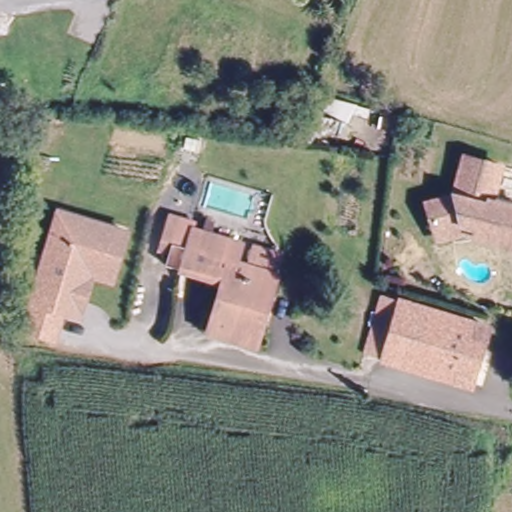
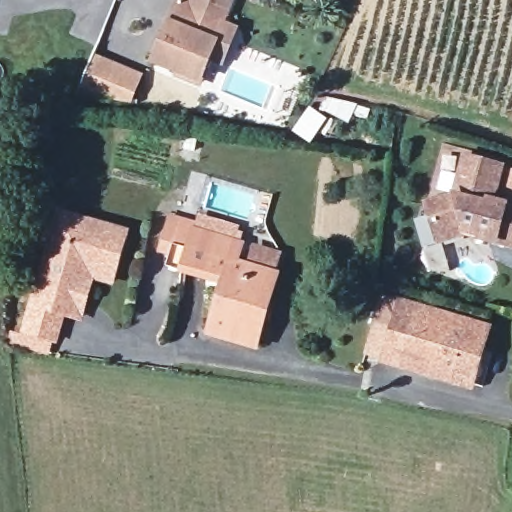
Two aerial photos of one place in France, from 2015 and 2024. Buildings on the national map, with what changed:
new [(171,1),(182,6),(185,0),(213,0),(223,4),(214,25),(200,59),(189,86),(168,77),(170,73),(145,63),(171,1)]
new [(214,25),(240,36),(225,69),(200,59),(214,25)]
new [(129,105),(80,92),(94,51),(142,74),(129,105)]
unchanged [(294,130),(310,108),(326,119),(310,141),(294,130)]
unchanged [(495,166),(486,200),(486,201),(485,200),(484,204),(451,195),(461,157),(495,166)]
unchanged [(431,231),(423,203),(451,195),(484,204),(485,200),(486,201),(486,200),(512,208),(512,235),(510,244),(470,234),(459,232),(433,239),(431,231)]
unchanged [(49,334),(19,325),(55,206),(120,226),(108,266),(72,255),(57,307),(49,334)]
unchanged [(237,244),(231,263),(245,267),(251,246),(273,253),(267,274),(270,275),(250,345),(205,332),(221,279),(162,262),(165,252),(154,248),(163,217),(191,225),(190,230),(237,244)]
unchanged [(108,266),(105,276),(87,271),(75,313),(57,307),(72,255),(108,266)]
unchanged [(390,364),(376,361),(379,335),(382,300),(406,307),(390,364)]
unchanged [(406,307),(493,333),(475,390),(390,364),(406,307)]

